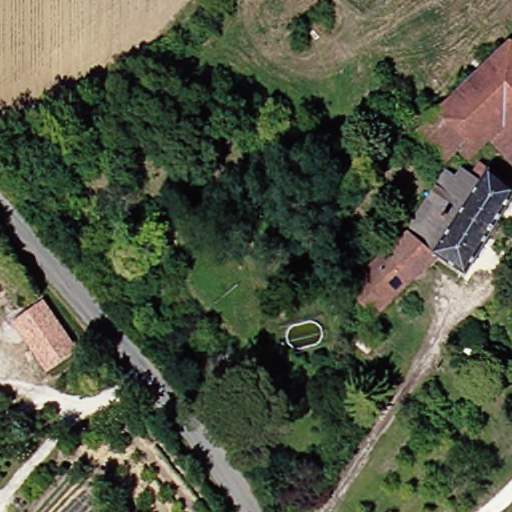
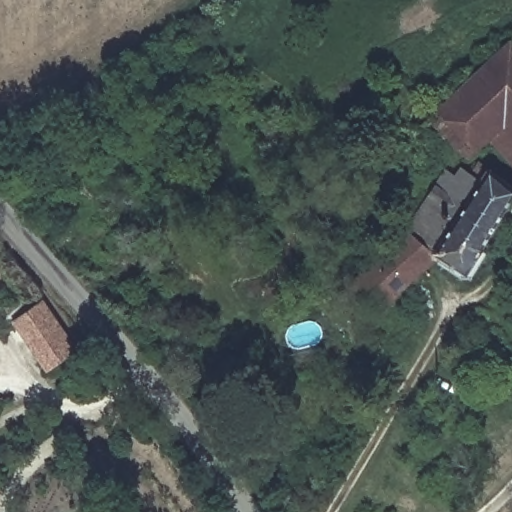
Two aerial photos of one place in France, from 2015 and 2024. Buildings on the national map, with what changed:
unchanged [(474,266),(447,252),(420,225),(475,166),(490,177),(510,155),(499,141),(482,155),(472,147),(452,165),(422,132),(512,46),(512,211),(474,266)]
unchanged [(425,277),(397,249),(420,225),(447,252),(425,277)]
unchanged [(397,249),(425,277),(411,292),(389,316),(359,287),(397,249)]
unchanged [(57,371),(17,326),(47,300),(88,345),(57,371)]

